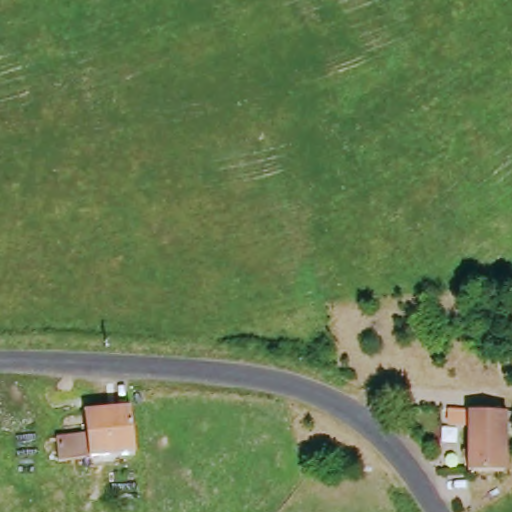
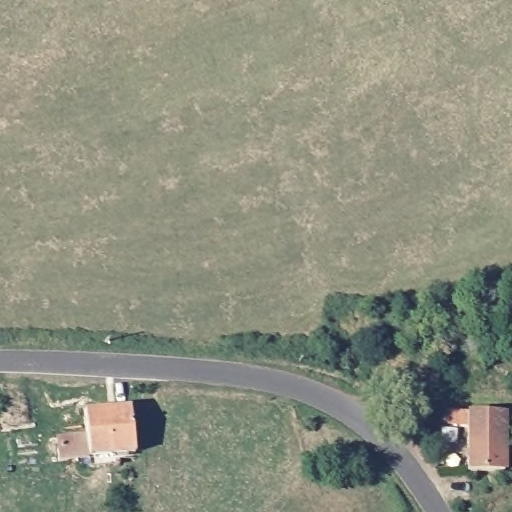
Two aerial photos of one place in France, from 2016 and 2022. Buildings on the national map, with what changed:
unchanged [(500,439),(501,477),(467,476),(466,428),(446,429),(446,415),(465,413),(512,413),(512,439),(500,439)]
unchanged [(61,440),(87,437),(85,417),(131,417),(135,458),(89,460),(61,461),(61,440)]

